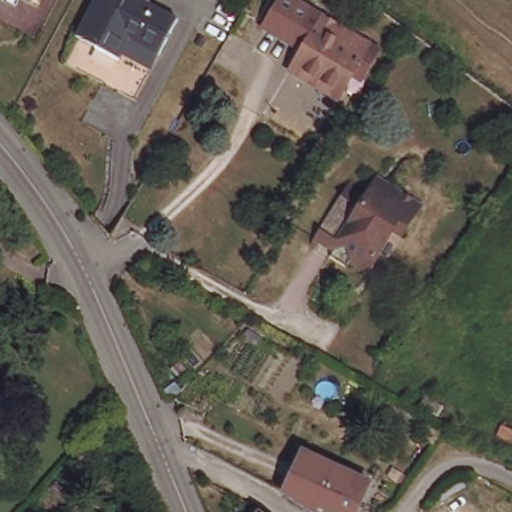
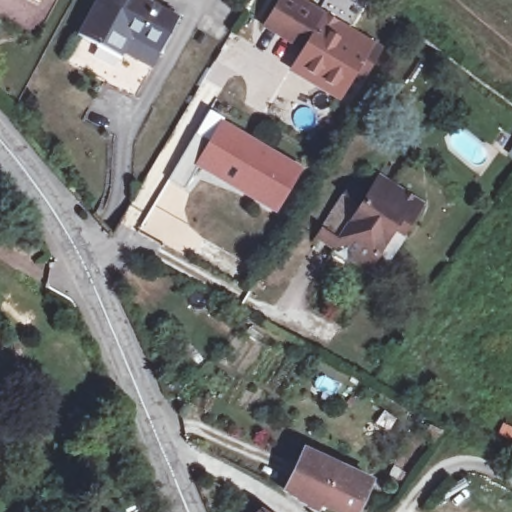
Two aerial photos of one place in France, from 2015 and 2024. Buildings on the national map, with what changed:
unchanged [(175,18),(156,54),(128,39),(118,59),(74,35),(93,0),(148,0),(147,3),(175,18)]
unchanged [(349,73),(335,96),(291,69),(305,47),(293,40),(292,41),(264,24),(279,0),(293,0),(322,17),(325,13),(369,40),(366,44),(375,49),(358,78),(349,73)]
new [(210,108),(248,132),(245,138),(298,168),(275,208),(240,187),(243,180),(202,156),(184,187),(168,177),(186,146),(195,131),(210,108)]
unchanged [(335,246),(317,234),(350,183),(367,194),(380,175),(421,202),(403,230),(396,225),(378,252),(386,257),(377,271),(353,256),(350,261),(333,250),(335,246)]
unchanged [(286,491),(305,452),(372,483),(358,512),(355,512),(325,498),(318,512),(317,512),(286,491)]

